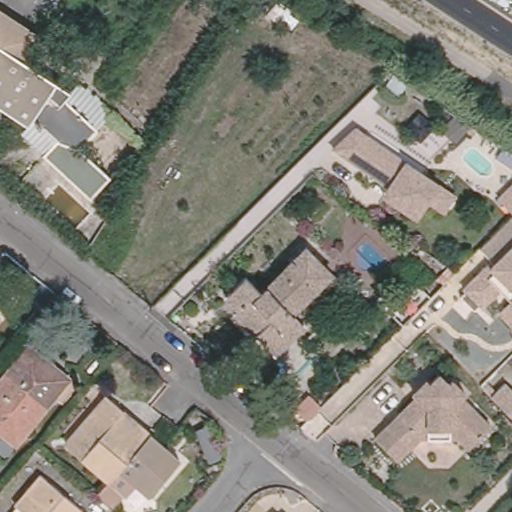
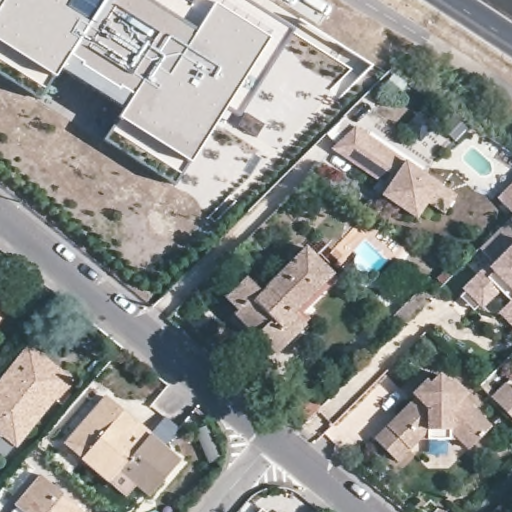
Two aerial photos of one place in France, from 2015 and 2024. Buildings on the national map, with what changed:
new [(187,5),(191,0),(240,0),(290,31),(235,118),(221,110),(187,163),(173,188),(102,141),(116,118),(120,110),(58,71),(53,78),(37,101),(0,77),(0,0),(180,0),(187,5)]
demolished [(25,123),(0,107),(0,14),(33,35),(18,58),(52,80),(25,123)]
demolished [(105,176),(86,197),(18,133),(25,123),(52,80),(65,90),(60,98),(92,128),(75,147),(105,176)]
unchanged [(409,212),(388,198),(381,193),(386,185),(361,168),(331,148),(352,127),(366,136),(419,172),(437,184),(453,196),(443,211),(427,201),(420,209),(416,216),(409,212)]
unchanged [(512,185),(512,193),(507,189),(512,185)]
unchanged [(492,296),(477,311),(475,309),(468,315),(455,301),(461,295),(458,291),(481,269),(484,272),(489,267),(474,252),(507,219),(512,224),(512,243),(510,245),(512,248),(512,329),(508,333),(492,317),(498,311),(503,307),(492,296)]
unchanged [(328,266),(289,307),(292,309),(278,324),(275,321),(260,336),(230,308),(233,304),(221,291),(243,271),(258,285),(302,240),(328,266)]
unchanged [(260,336),(275,321),(278,324),(292,309),(289,307),(328,266),(334,271),(295,312),(302,319),(273,348),(260,336)]
unchanged [(0,450),(0,385),(31,346),(72,378),(8,456),(0,450)]
unchanged [(411,446),(397,459),(375,436),(418,394),(414,391),(428,378),(431,380),(441,371),(450,380),(454,377),(466,390),(464,393),(493,423),(471,446),(461,435),(419,437),(411,446)]
unchanged [(106,481),(62,443),(102,396),(146,433),(115,470),(106,481)]
unchanged [(512,398),(512,416),(502,407),(512,398)]
unchanged [(177,459),(146,496),(115,470),(146,433),(177,459)]
unchanged [(42,474),(87,512),(25,512),(17,504),(42,474)]

